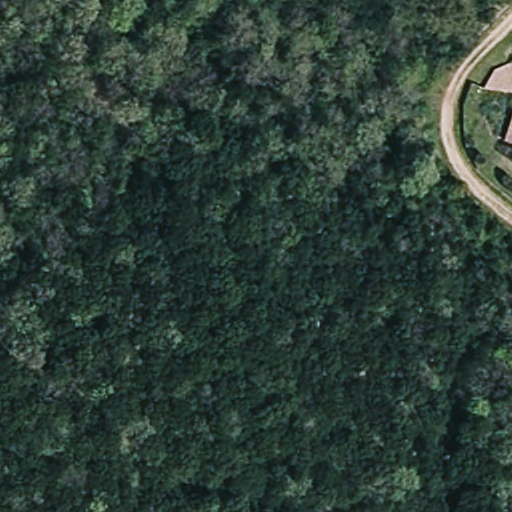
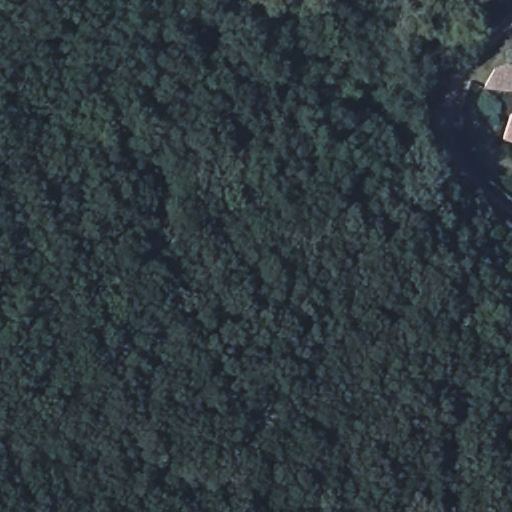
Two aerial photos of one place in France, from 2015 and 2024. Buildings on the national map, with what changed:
unchanged [(508,71),(512,69),(512,91),(496,89),(508,71)]

